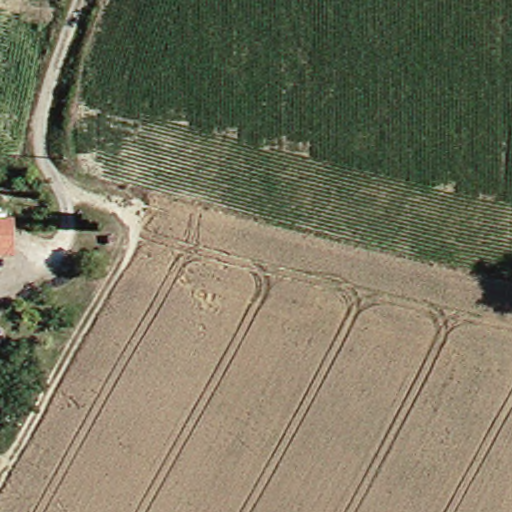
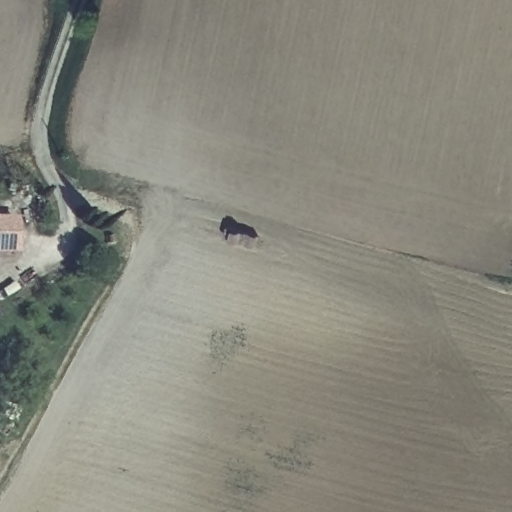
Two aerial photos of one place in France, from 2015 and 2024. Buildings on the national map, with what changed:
unchanged [(21,220),(21,248),(0,249),(0,221),(21,220)]

